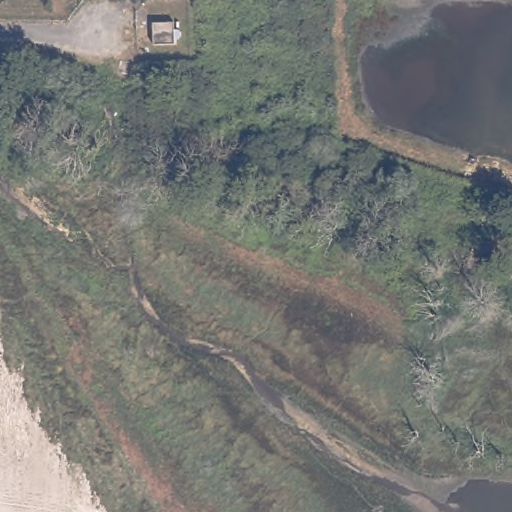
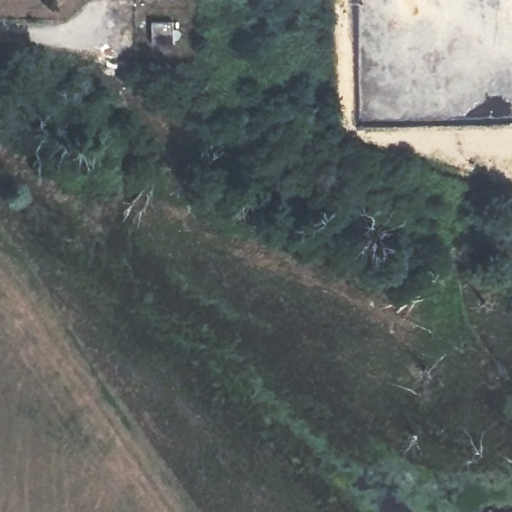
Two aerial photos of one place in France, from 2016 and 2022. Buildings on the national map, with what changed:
unchanged [(178,36),(172,35),(155,35),(155,13),(172,14),(178,14),(178,36)]

